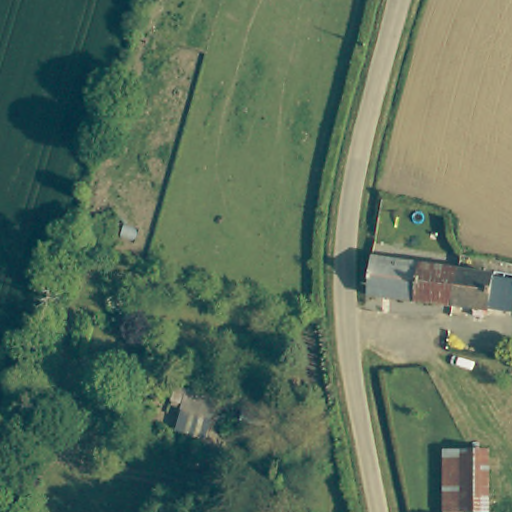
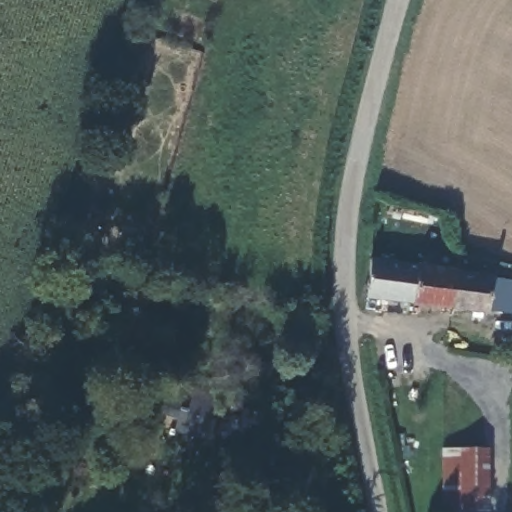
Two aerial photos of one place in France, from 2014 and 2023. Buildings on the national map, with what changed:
unchanged [(367,297),(372,260),(422,266),(417,304),(367,297)]
unchanged [(457,271),(452,308),(417,304),(422,266),(457,271)]
unchanged [(492,275),(492,279),(512,281),(512,314),(488,311),(488,313),(452,308),(457,271),(492,275)]
unchanged [(206,401),(201,418),(169,409),(174,391),(206,401)]
unchanged [(445,512),(442,455),(487,455),(487,512),(445,512)]

